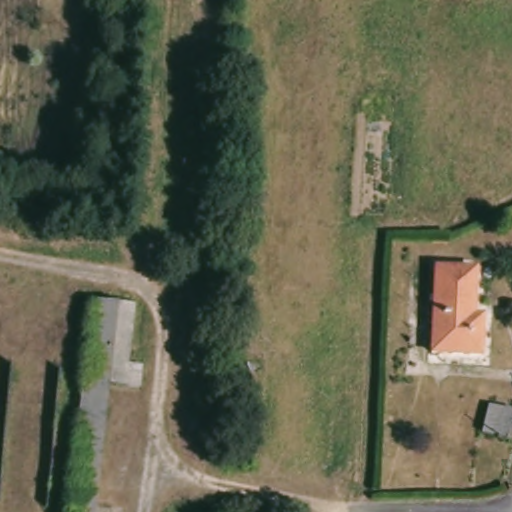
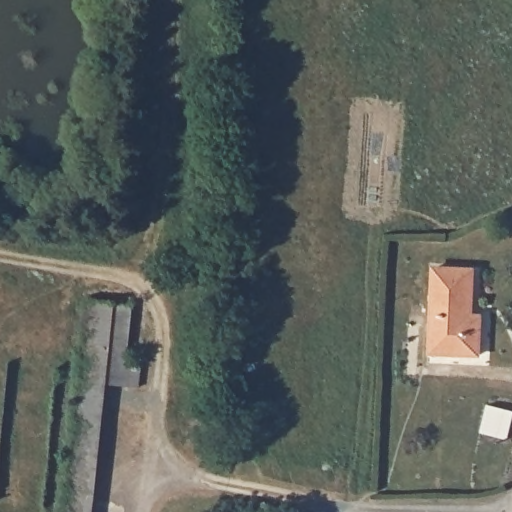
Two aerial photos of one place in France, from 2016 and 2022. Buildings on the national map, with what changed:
unchanged [(476,267),(473,315),(484,315),(481,355),(430,351),(438,264),(476,267)]
unchanged [(84,299),(126,301),(125,360),(138,361),(137,383),(100,381),(100,389),(79,388),(84,299)]
unchanged [(92,512),(72,512),(79,388),(100,389),(92,512)]
unchanged [(511,412),(505,442),(476,435),(482,405),(511,412)]

